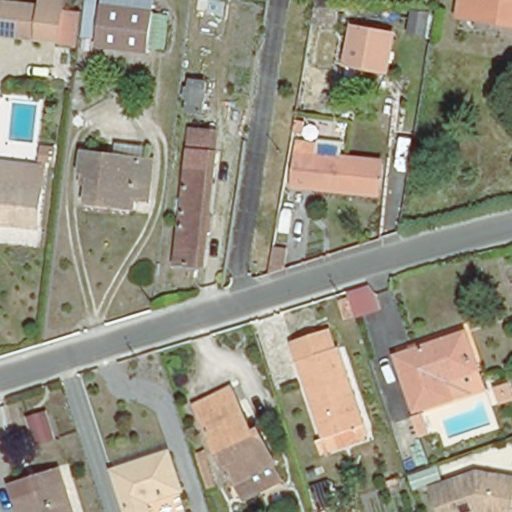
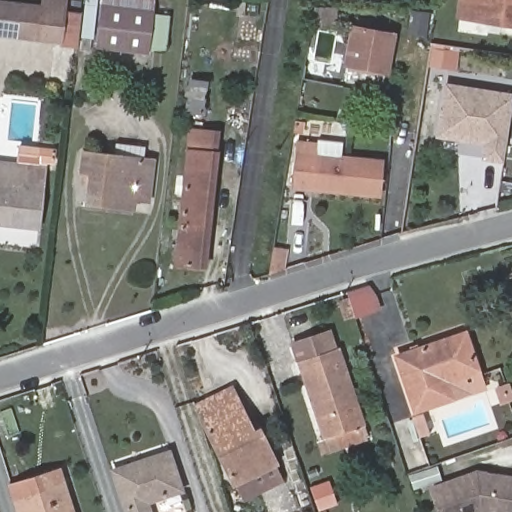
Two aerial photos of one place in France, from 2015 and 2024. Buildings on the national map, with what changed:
unchanged [(66,6),(63,41),(0,35),(0,0),(44,5),(45,0),(66,0),(66,5),(66,6)]
unchanged [(98,42),(80,40),(85,0),(154,0),(153,12),(102,5),(98,42)]
unchanged [(499,26),(458,21),(460,6),(461,0),(512,0),(512,28),(499,26)]
unchanged [(148,53),(97,46),(102,5),(153,12),(148,53)]
unchanged [(394,29),(388,65),(346,57),(352,22),(394,29)]
new [(446,82),(512,93),(512,114),(505,164),(482,159),(485,144),(437,136),(446,82)]
unchanged [(206,268),(201,268),(174,265),(190,130),(217,132),(222,133),(206,268)]
unchanged [(299,147),(318,150),(319,145),(345,146),(343,162),(383,166),(379,200),(294,191),(299,147)]
unchanged [(83,147),(153,154),(150,195),(136,194),(135,203),(88,199),(90,179),(83,178),(84,167),(81,167),(83,147)]
unchanged [(0,163),(43,167),(38,225),(0,221),(0,163)]
new [(369,285),(375,296),(379,308),(356,315),(348,292),(369,285)]
unchanged [(323,448),(319,435),(327,432),(295,340),(332,327),(337,344),(341,343),(367,419),(371,432),(323,448)]
unchanged [(453,391),(416,403),(399,350),(466,327),(478,362),(484,381),(453,391)]
unchanged [(198,405),(233,387),(255,430),(260,428),(277,462),(236,482),(198,405)]
unchanged [(431,423),(416,428),(410,408),(424,403),(431,423)]
unchanged [(166,446),(178,483),(142,494),(148,512),(125,512),(110,465),(166,446)]
unchanged [(11,486),(43,475),(60,470),(74,512),(20,512),(16,498),(11,486)]
unchanged [(478,472),(512,478),(512,500),(510,512),(441,512),(433,487),(478,472)]

